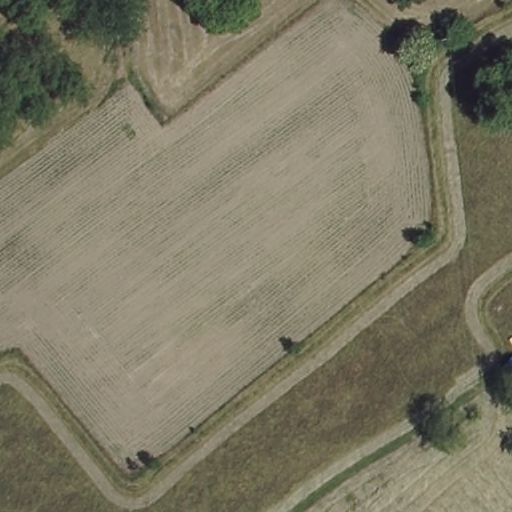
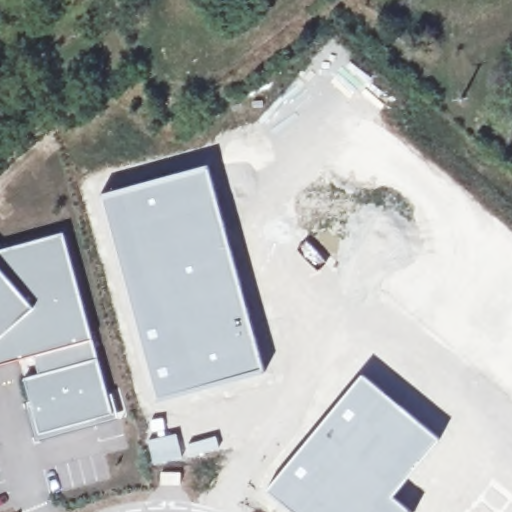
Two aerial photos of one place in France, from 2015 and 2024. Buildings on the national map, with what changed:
new [(208,162),(252,317),(265,372),(157,401),(100,192),(208,162)]
new [(117,411),(43,431),(28,375),(43,371),(38,353),(23,357),(15,325),(0,338),(0,248),(68,230),(117,411)]
new [(23,357),(0,363),(0,338),(15,325),(23,357)]
new [(362,372),(440,437),(393,495),(411,511),(410,512),(291,512),(264,490),(295,449),(362,372)]
new [(177,432),(183,457),(152,464),(147,439),(177,432)]
new [(161,471),(180,472),(180,483),(161,482),(161,471)]

